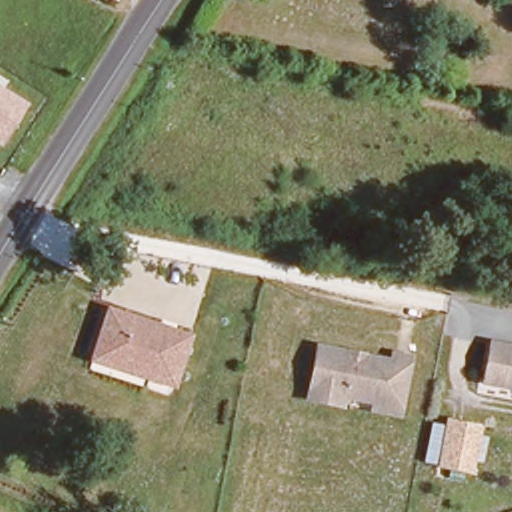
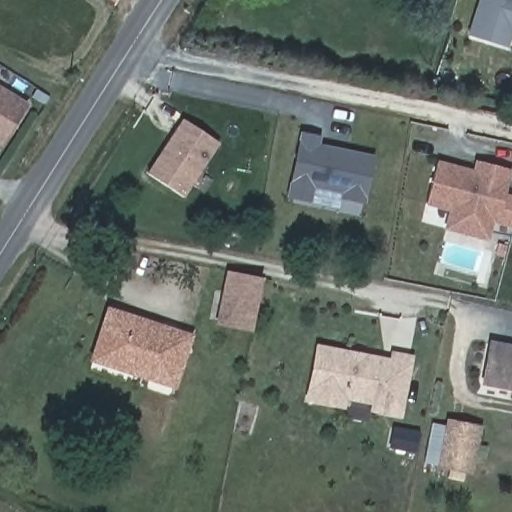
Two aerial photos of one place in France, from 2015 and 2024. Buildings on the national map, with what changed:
new [(508,46),(468,35),(479,0),(512,0),(512,34),(511,34),(508,46)]
unchanged [(29,104),(1,145),(0,144),(0,86),(29,104)]
new [(185,199),(148,173),(182,119),(221,143),(185,199)]
new [(339,201),(340,195),(314,190),(311,205),(286,199),(300,132),(322,137),(320,144),(375,155),(365,205),(339,201)]
new [(512,195),(512,227),(494,224),(490,241),(444,229),(449,211),(426,205),(438,160),(474,170),(476,160),(512,169),(512,177),(508,194),(512,195)]
new [(264,278),(253,332),(216,324),(227,270),(264,278)]
unchanged [(189,335),(177,370),(142,360),(136,374),(92,359),(106,308),(189,335)]
unchanged [(315,342),(387,357),(389,350),(413,355),(400,418),(368,412),(369,404),(345,400),(342,410),(303,400),(315,342)]
unchanged [(488,375),(493,347),(512,350),(512,391),(486,386),(488,375)]
unchanged [(435,468),(436,462),(423,460),(430,421),(444,425),(446,417),(482,424),(473,475),(435,468)]

